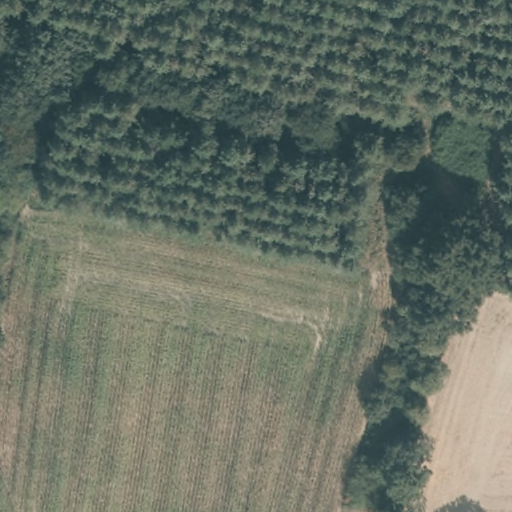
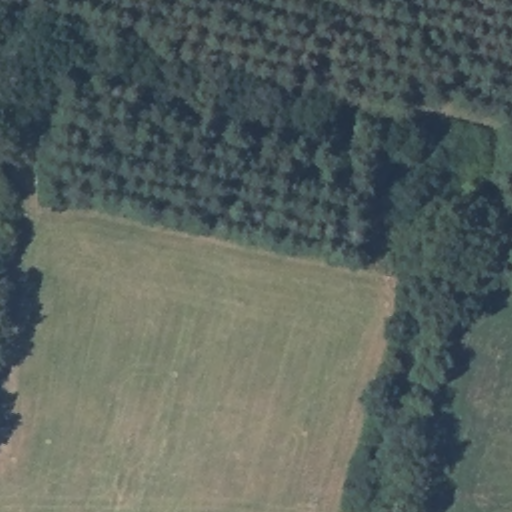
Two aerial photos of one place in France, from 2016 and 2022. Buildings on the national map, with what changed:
unchanged [(4,81),(0,109),(0,80),(4,81)]

